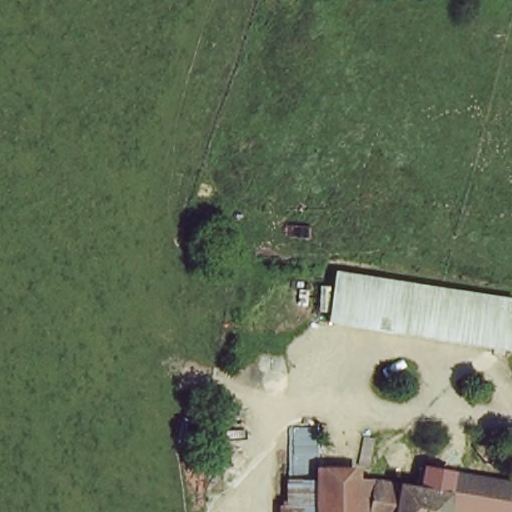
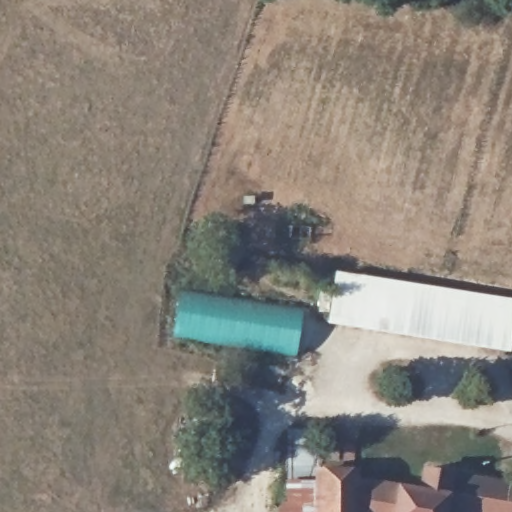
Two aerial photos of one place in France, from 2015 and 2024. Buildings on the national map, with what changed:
unchanged [(512,302),(512,337),(509,360),(328,329),(341,272),(512,302)]
new [(174,337),(181,286),(303,307),(296,357),(174,337)]
unchanged [(270,486),(311,488),(418,496),(419,472),(511,488),(512,488),(512,512),(271,512),(270,486)]

